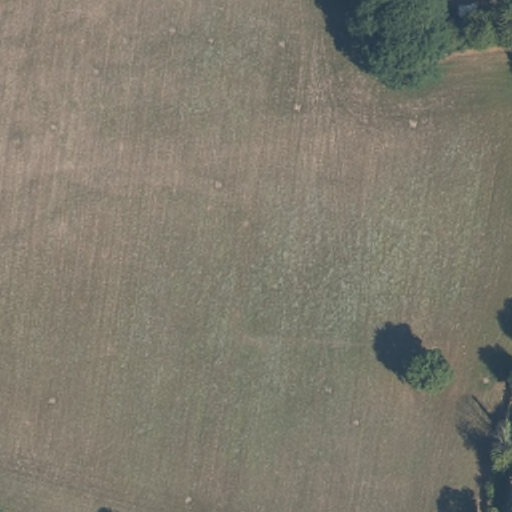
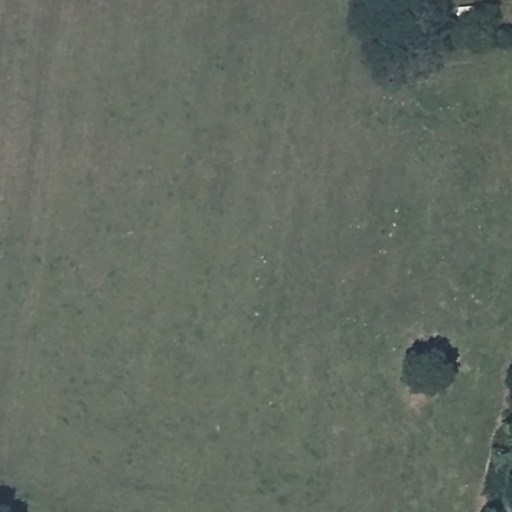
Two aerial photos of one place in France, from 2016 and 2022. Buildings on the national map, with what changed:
[]

